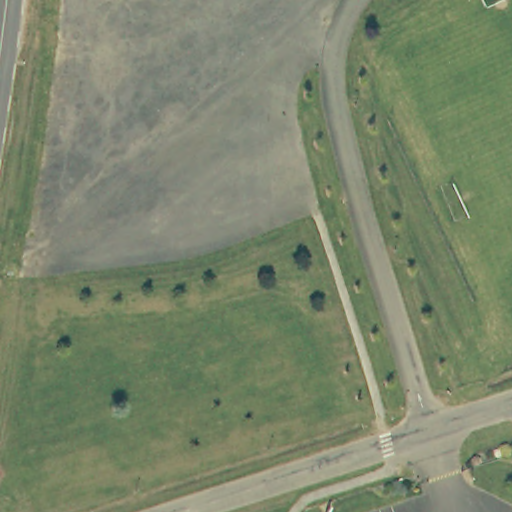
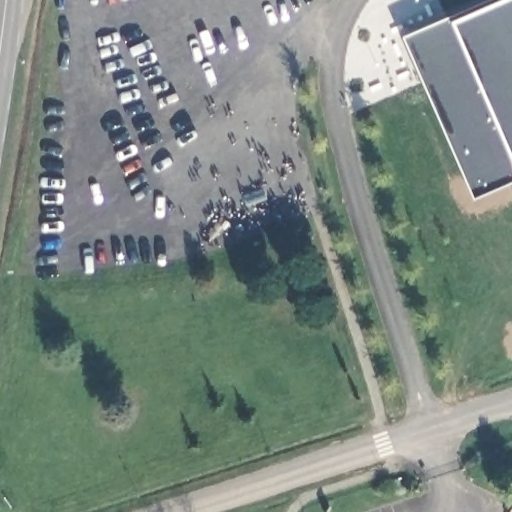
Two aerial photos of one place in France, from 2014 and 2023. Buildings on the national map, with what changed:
new [(464,62),(447,20),(493,0),(512,0),(512,156),(507,159),(512,170),(512,172),(470,191),(423,79),(464,62)]
new [(447,20),(464,62),(423,79),(405,37),(447,20)]

